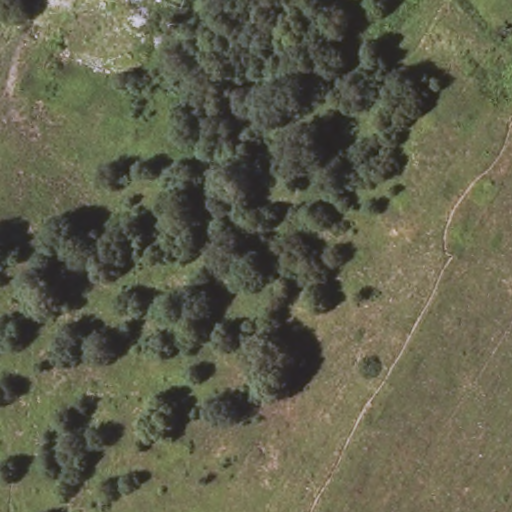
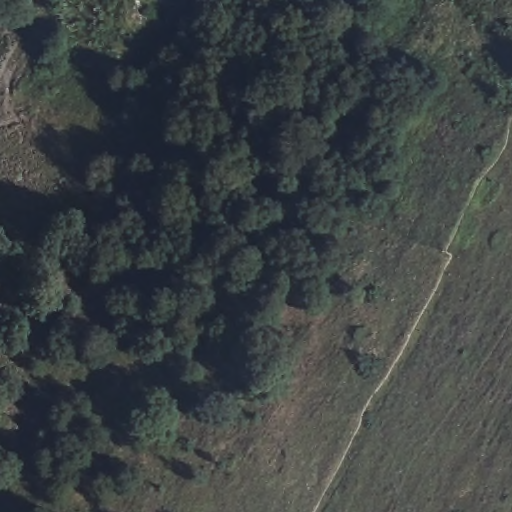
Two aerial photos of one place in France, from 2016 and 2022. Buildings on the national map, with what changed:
unchanged [(161,0),(184,0),(181,7),(161,0)]

